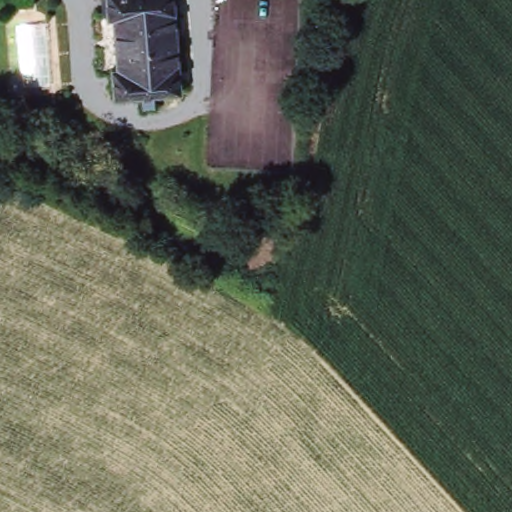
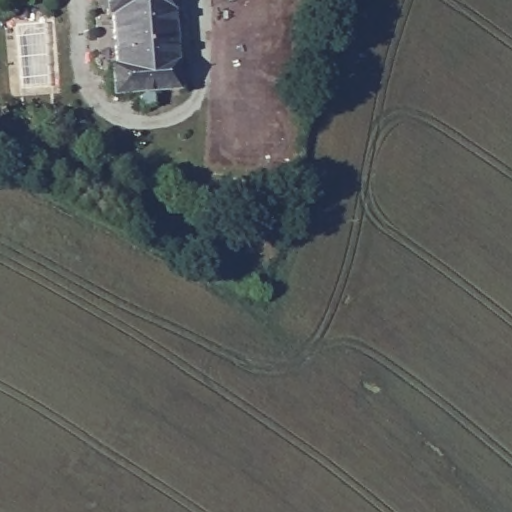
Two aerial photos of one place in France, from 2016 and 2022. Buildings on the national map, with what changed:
unchanged [(153,97),(154,110),(140,112),(139,99),(114,101),(111,73),(116,72),(112,21),(106,21),(104,0),(172,0),(181,95),(153,97)]

